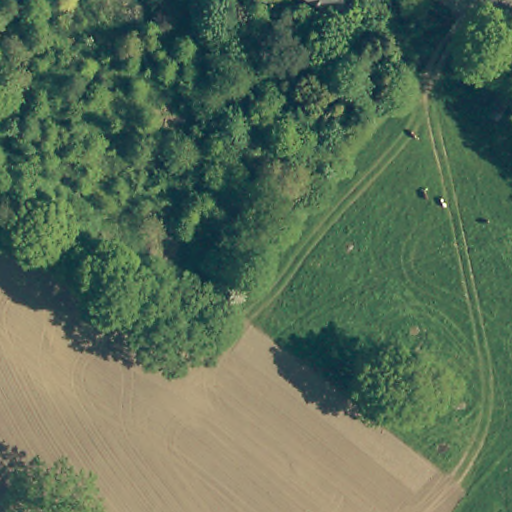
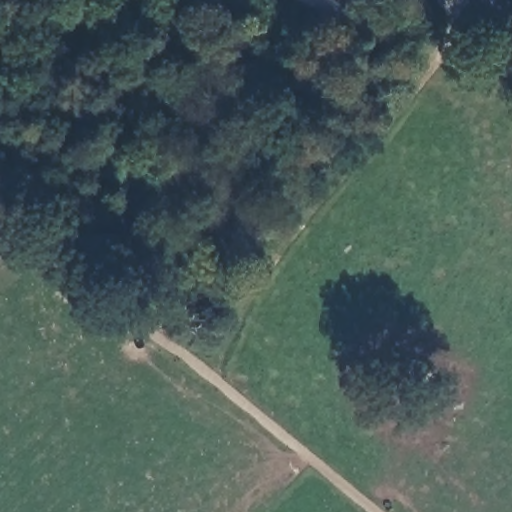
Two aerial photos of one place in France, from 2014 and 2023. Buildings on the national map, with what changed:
unchanged [(301,0),(349,0),(332,23),(301,0)]

